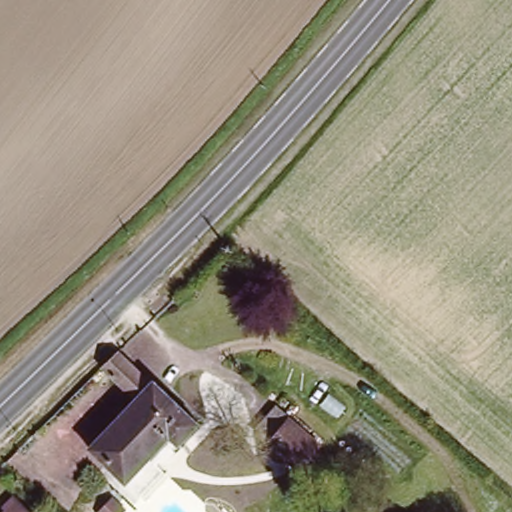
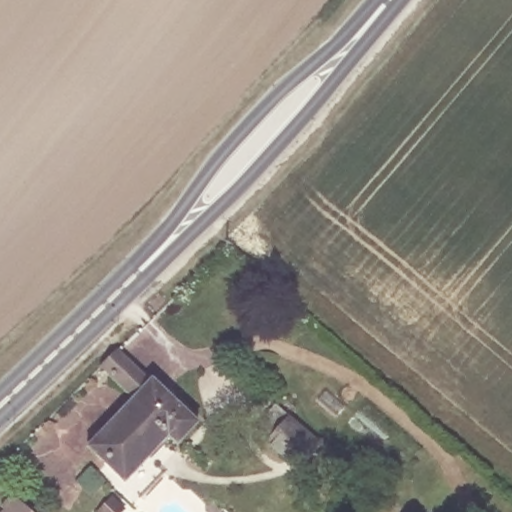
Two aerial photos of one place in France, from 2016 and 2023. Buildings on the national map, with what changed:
unchanged [(137,393),(102,359),(119,343),(154,376),(156,372),(201,415),(183,434),(175,426),(129,474),(92,439),(111,420),(134,396),(137,393)]
unchanged [(303,465),(259,428),(280,403),(324,440),(303,465)]
unchanged [(31,512),(3,512),(5,510),(1,507),(13,495),(20,502),(31,512)]

